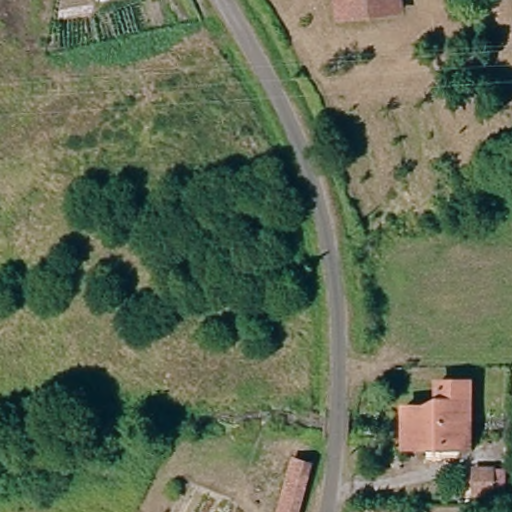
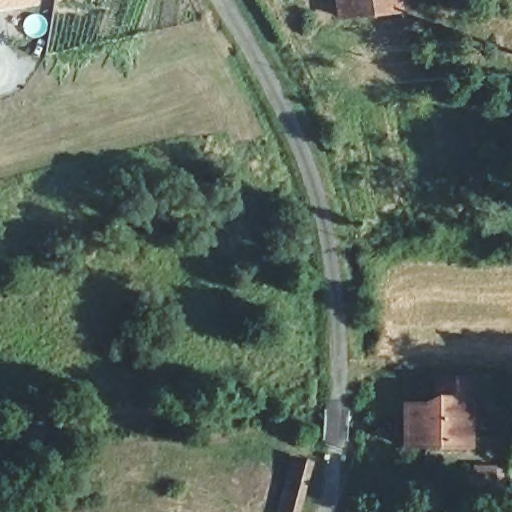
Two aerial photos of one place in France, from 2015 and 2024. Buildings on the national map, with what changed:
new [(38,0),(39,2),(0,8),(0,0),(38,0)]
unchanged [(402,0),(402,9),(341,16),(338,0),(402,0)]
unchanged [(474,452),(406,452),(408,404),(433,402),(437,379),(475,377),(474,452)]
unchanged [(293,457),(305,460),(294,512),(281,512),(293,457)]
unchanged [(498,474),(500,498),(483,500),(486,474),(498,474)]

